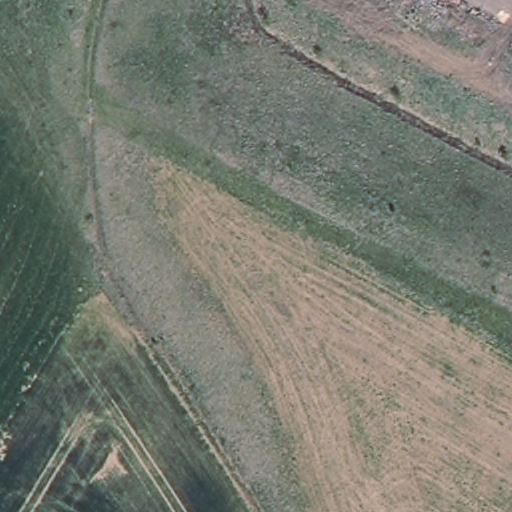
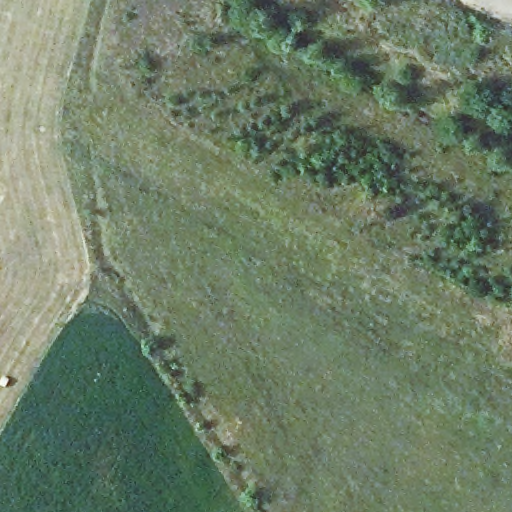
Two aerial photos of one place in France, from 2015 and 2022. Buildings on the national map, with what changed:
[]

